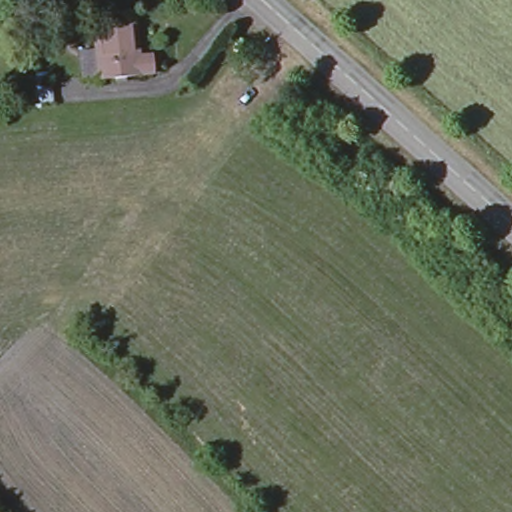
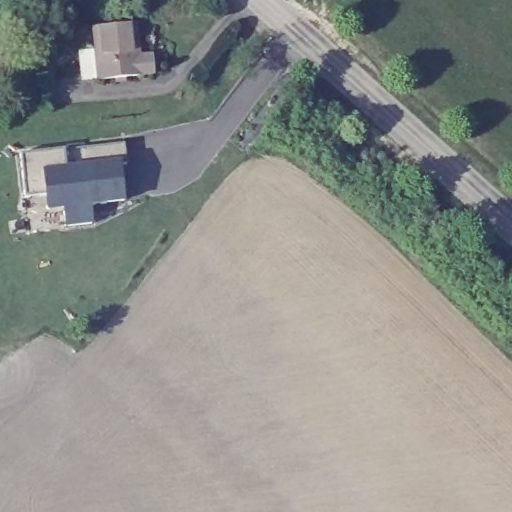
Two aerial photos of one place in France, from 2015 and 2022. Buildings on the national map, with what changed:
unchanged [(93,27),(135,24),(138,57),(151,57),(152,73),(98,78),(93,27)]
new [(49,71),(51,101),(22,104),(19,74),(49,71)]
new [(21,153),(64,149),(124,143),(127,163),(121,164),(125,202),(91,205),(93,224),(65,227),(63,207),(46,209),(44,196),(24,198),(21,153)]

